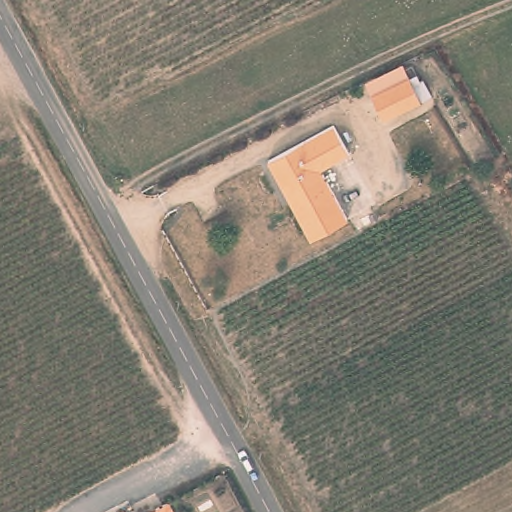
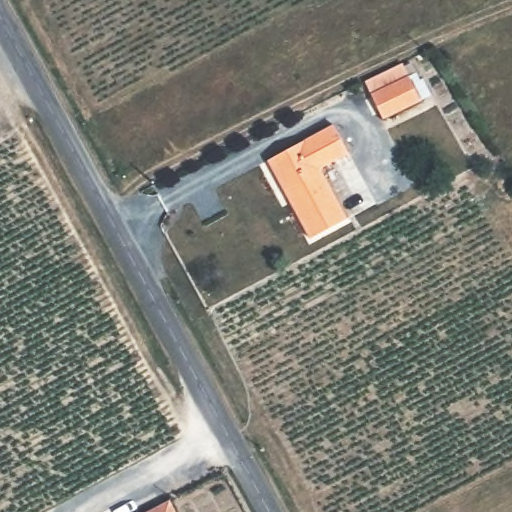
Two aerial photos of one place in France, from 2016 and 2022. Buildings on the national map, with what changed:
unchanged [(402,62),(410,77),(417,72),(421,79),(424,78),(433,97),(383,123),(365,82),(402,62)]
unchanged [(330,130),(346,159),(318,174),(345,224),(310,244),(267,166),(330,130)]
unchanged [(170,500),(176,512),(146,512),(170,500)]

